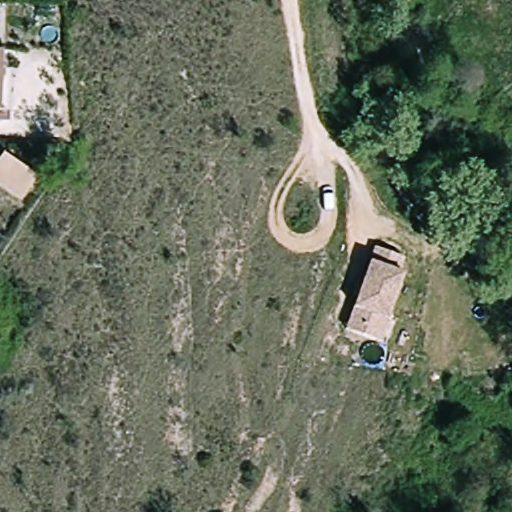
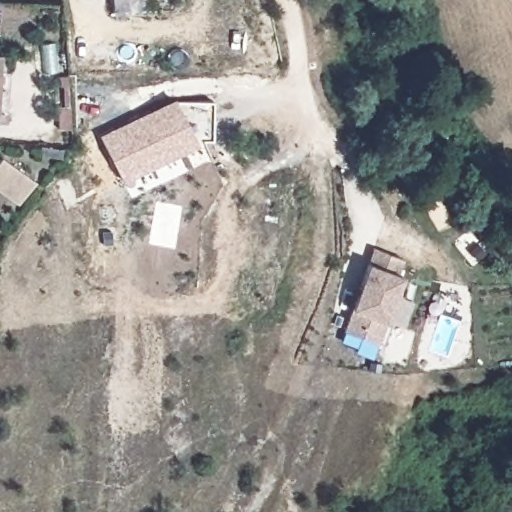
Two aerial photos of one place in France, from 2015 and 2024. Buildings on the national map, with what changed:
unchanged [(0,110),(0,75),(6,75),(5,110),(0,110)]
new [(175,105),(214,106),(212,146),(195,145),(121,182),(101,141),(175,105)]
unchanged [(23,202),(0,183),(0,163),(4,157),(37,185),(23,202)]
unchanged [(357,336),(345,332),(347,325),(374,252),(375,249),(404,260),(398,275),(403,277),(380,337),(378,345),(357,336)]

